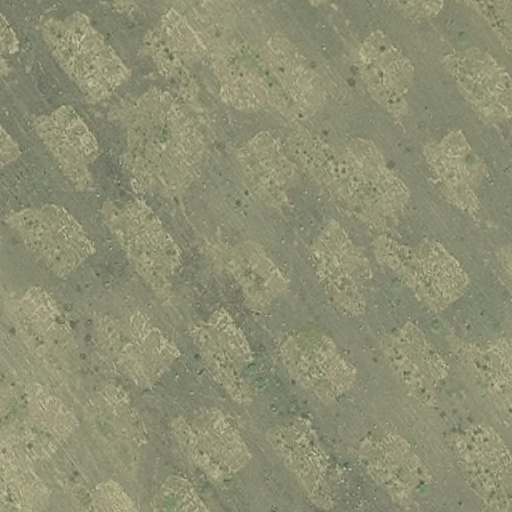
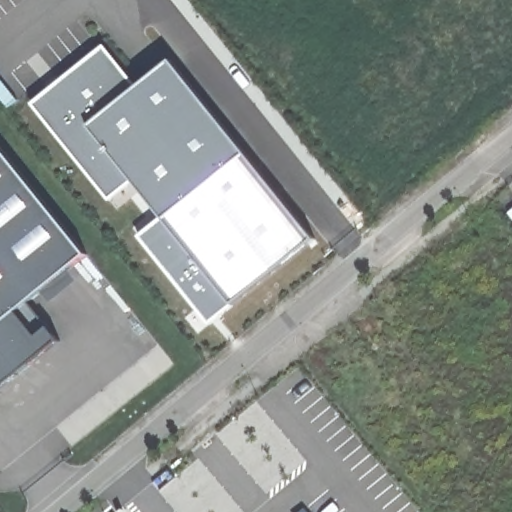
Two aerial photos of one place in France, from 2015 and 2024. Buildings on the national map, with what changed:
new [(104,45),(138,86),(171,59),(247,153),(165,219),(134,181),(110,200),(33,104),(104,45)]
new [(88,254),(70,269),(79,281),(53,302),(43,291),(29,301),(60,341),(29,366),(31,370),(25,375),(21,372),(0,390),(0,145),(88,254)]
new [(316,239),(236,303),(211,322),(141,237),(165,219),(247,153),(316,239)]
new [(308,512),(302,512),(306,509),(308,512)]

